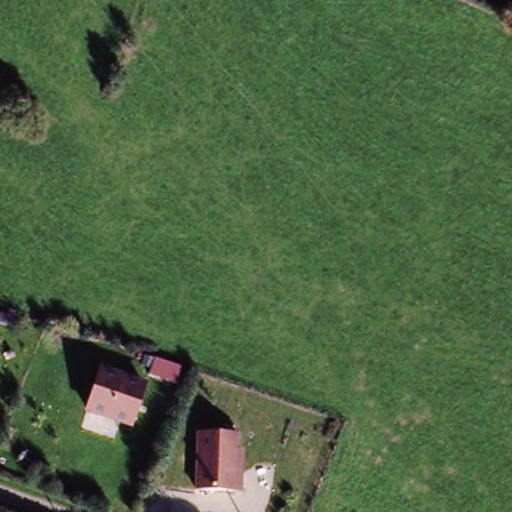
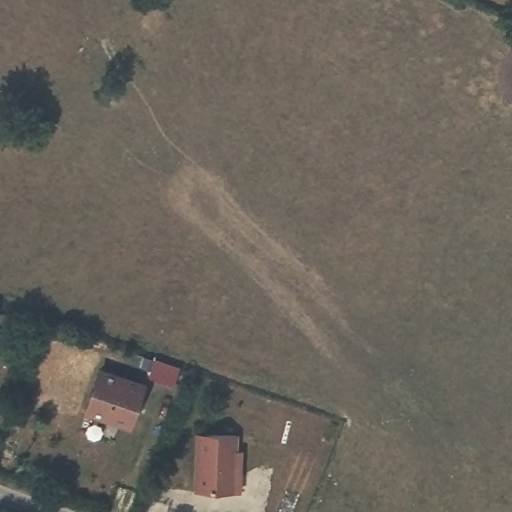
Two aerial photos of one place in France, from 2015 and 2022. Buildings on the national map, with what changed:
unchanged [(150,388),(134,433),(85,414),(100,371),(150,388)]
unchanged [(237,434),(237,451),(242,451),(241,489),(194,490),(192,433),(237,434)]

